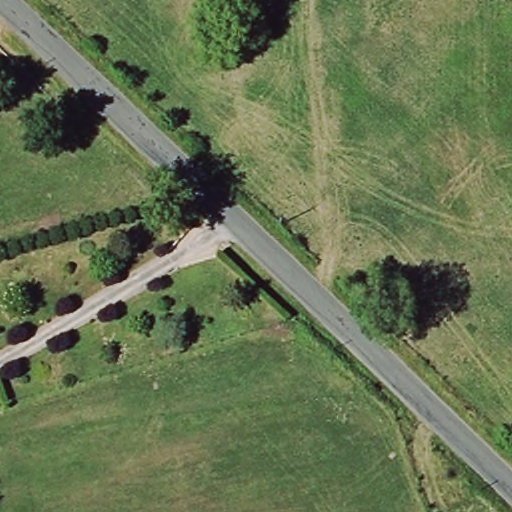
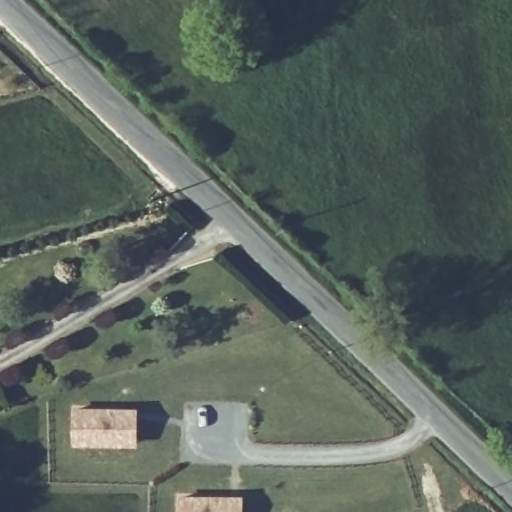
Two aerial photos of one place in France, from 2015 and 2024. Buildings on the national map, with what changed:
new [(116,439),(71,438),(72,405),(117,406),(132,406),(131,439),(116,439)]
new [(222,494),(237,495),(237,512),(178,512),(178,494),(222,494)]

